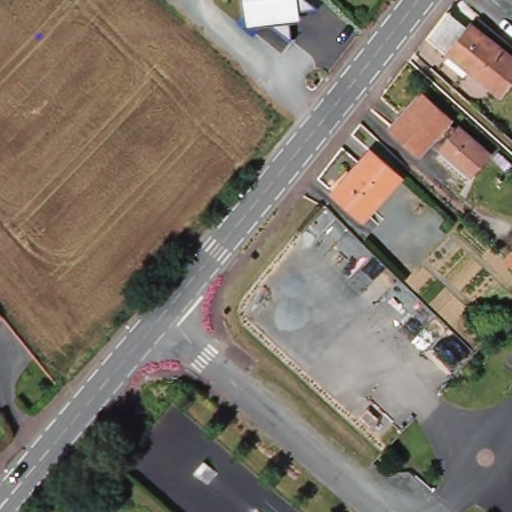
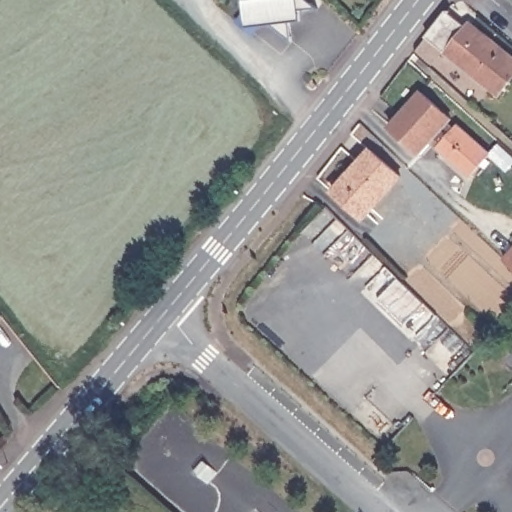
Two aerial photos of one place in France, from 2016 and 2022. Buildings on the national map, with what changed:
unchanged [(241,0),(307,0),(315,6),(297,9),(298,20),(289,21),(291,39),(270,23),(244,26),(241,0)]
unchanged [(455,6),(477,23),(475,26),(512,57),(512,88),(504,98),(494,91),(479,109),(419,54),(455,6)]
unchanged [(472,173),(433,138),(421,152),(392,125),(423,89),(491,151),(472,173)]
unchanged [(364,217),(335,190),(372,148),(401,174),(364,217)]
unchanged [(512,252),(512,266),(505,259),(512,252)]
unchanged [(3,311),(0,314),(0,308),(3,311)]
unchanged [(115,475),(102,461),(116,448),(129,462),(127,465),(115,475)]

